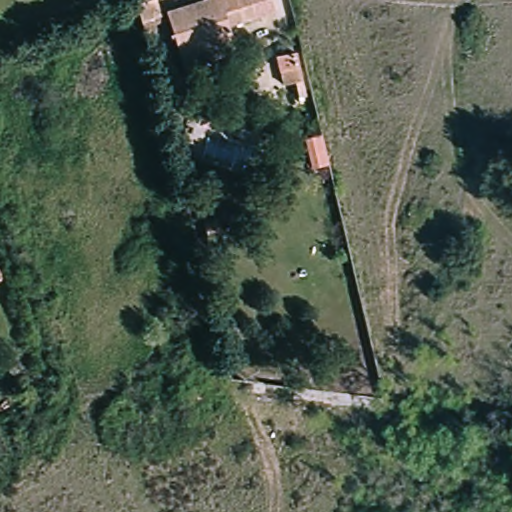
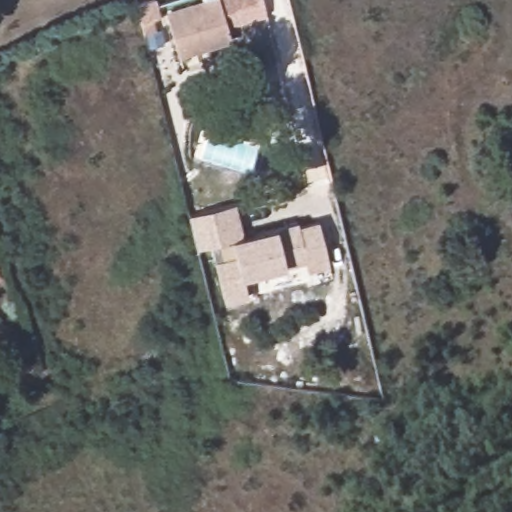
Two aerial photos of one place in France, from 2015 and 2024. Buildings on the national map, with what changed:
unchanged [(142,0),(161,0),(164,12),(153,15),(155,26),(148,28),(142,0)]
unchanged [(190,64),(185,51),(172,8),(200,0),(277,0),(280,8),(232,22),(237,35),(241,49),(190,64)]
demolished [(286,70),(297,67),(305,97),(298,99),(294,83),(282,86),(279,72),(286,70)]
demolished [(325,148),(329,166),(313,170),(306,140),(322,136),(325,148)]
new [(235,202),(245,234),(275,226),(297,220),(298,224),(318,219),(329,264),(307,269),(305,259),(286,266),(243,276),(247,296),(224,301),(210,246),(197,248),(189,214),(235,202)]

